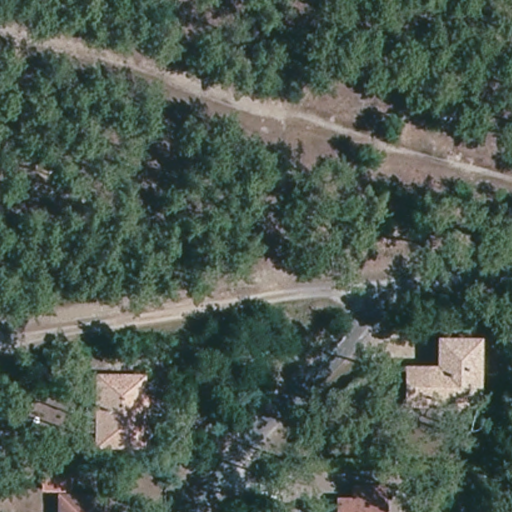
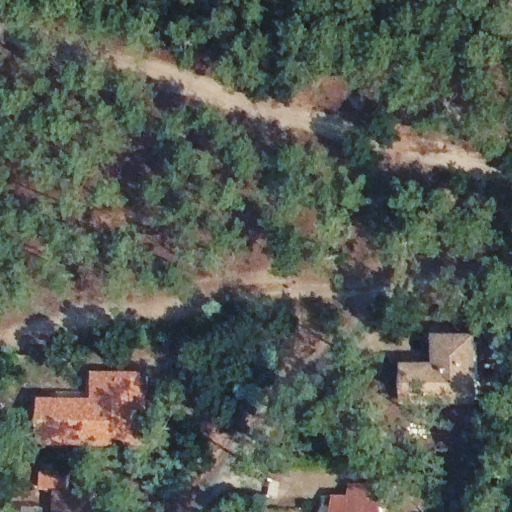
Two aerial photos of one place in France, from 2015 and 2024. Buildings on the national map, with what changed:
unchanged [(436,382),(436,347),(474,349),(472,411),(410,409),(411,383),(436,382)]
new [(110,442),(109,447),(40,446),(40,399),(93,399),(93,376),(111,376),(110,442)]
unchanged [(160,444),(150,443),(110,442),(111,376),(152,376),(152,392),(161,392),(160,444)]
unchanged [(64,470),(63,483),(37,482),(38,469),(64,470)]
unchanged [(331,507),(331,490),(348,490),(348,477),(376,477),(376,512),(331,512),(331,507)]
unchanged [(93,491),(93,512),(53,512),(53,490),(93,491)]

